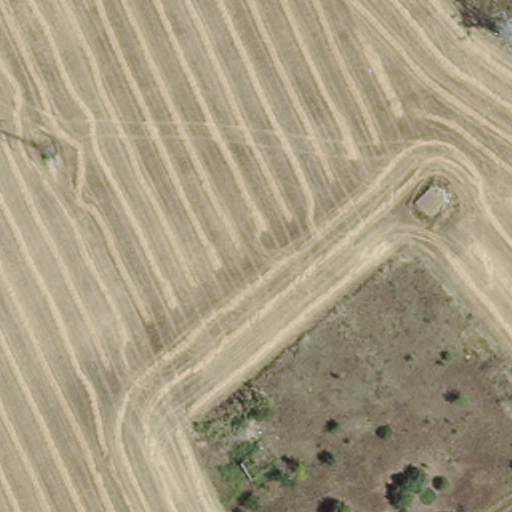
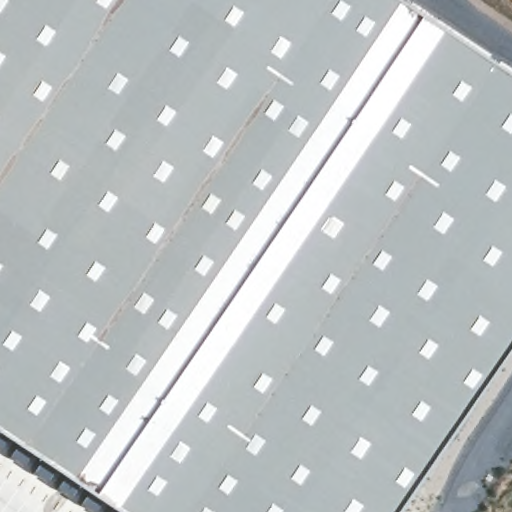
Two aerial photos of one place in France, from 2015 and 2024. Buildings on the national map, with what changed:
new [(512,311),(379,512),(124,512),(72,477),(0,430),(0,0),(406,0),(512,71),(512,311)]
demolished [(448,209),(426,217),(416,198),(436,187),(448,209)]

